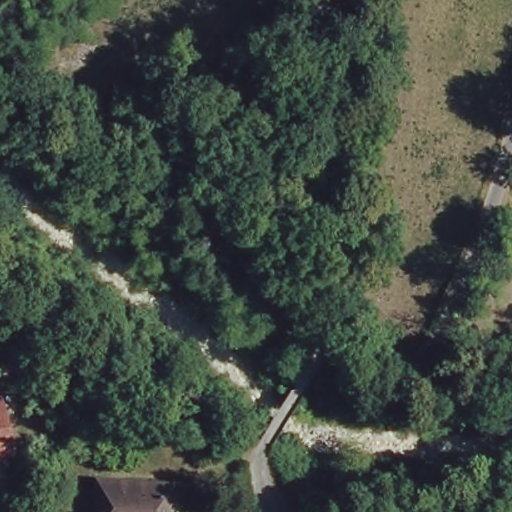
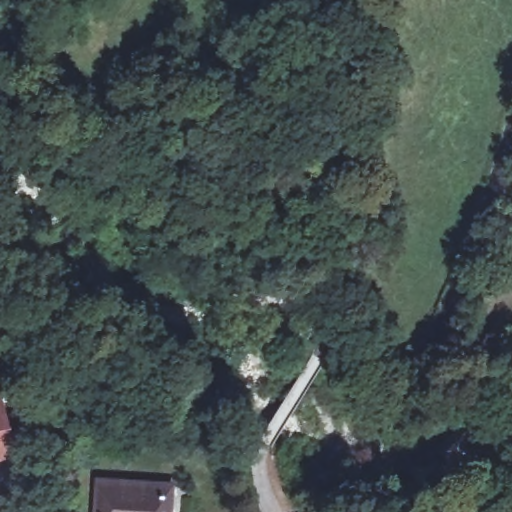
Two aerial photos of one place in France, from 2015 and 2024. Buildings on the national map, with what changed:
unchanged [(0,441),(4,458),(0,459),(0,441)]
unchanged [(97,482),(169,485),(167,512),(96,512),(97,482)]
unchanged [(50,500),(59,492),(67,502),(58,509),(50,500)]

